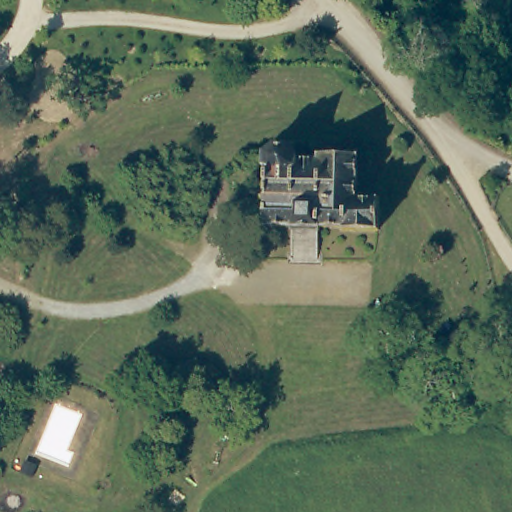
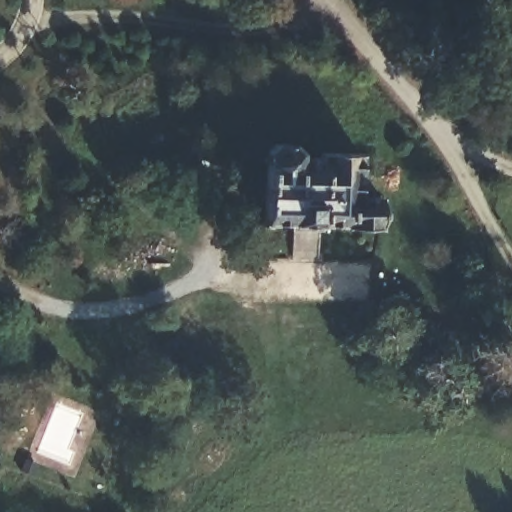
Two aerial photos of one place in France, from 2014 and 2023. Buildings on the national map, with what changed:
unchanged [(286,127),(290,133),(289,140),(353,142),(354,181),(381,184),(379,222),(326,220),(325,250),(294,250),(294,219),(271,218),(272,133),(278,127),(286,127)]

